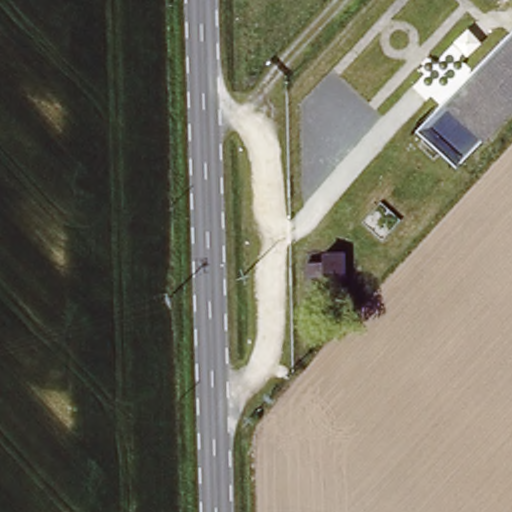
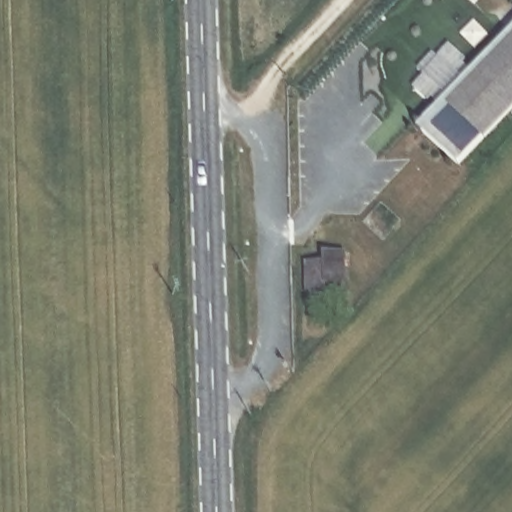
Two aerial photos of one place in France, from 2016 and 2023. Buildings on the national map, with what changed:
unchanged [(484,133),(457,162),(420,128),(512,25),(512,122),(495,142),(484,133)]
unchanged [(306,251),(342,251),(342,291),(305,291),(306,251)]

